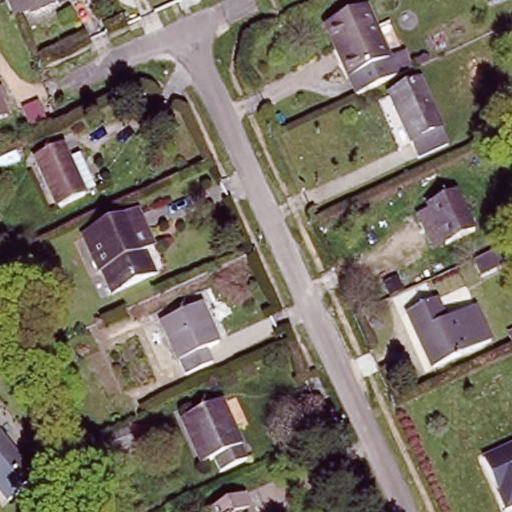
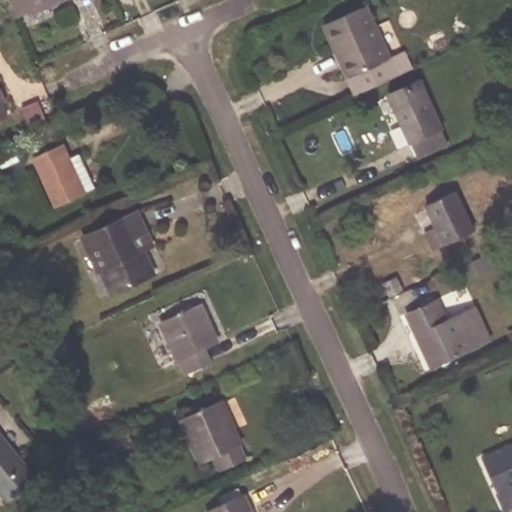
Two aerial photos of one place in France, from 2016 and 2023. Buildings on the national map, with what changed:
unchanged [(38,12),(36,8),(20,15),(13,0),(63,0),(38,12)]
unchanged [(333,47),(322,23),(364,4),(388,57),(353,73),(346,76),(333,47)]
unchanged [(453,24),(459,37),(438,47),(432,34),(453,24)]
unchanged [(406,129),(392,98),(422,84),(444,131),(419,143),(413,145),(406,129)]
unchanged [(0,119),(0,96),(8,115),(0,119)]
unchanged [(65,163),(76,157),(93,191),(80,197),(81,198),(55,210),(32,160),(58,148),(65,163)]
unchanged [(461,196),(479,235),(451,248),(433,209),(461,196)]
unchanged [(99,272),(96,274),(80,240),(135,215),(151,249),(141,254),(152,277),(110,296),(99,272)]
unchanged [(444,323),(473,309),(489,345),(431,371),(415,336),(406,315),(412,313),(434,302),(444,323)]
unchanged [(198,308),(216,347),(204,352),(211,367),(183,379),(159,325),(198,308)]
unchanged [(216,457),(205,462),(185,417),(224,399),(251,457),(223,470),(216,457)]
unchanged [(10,500),(0,486),(0,428),(39,477),(10,500)]
unchanged [(133,430),(136,443),(116,449),(113,436),(133,430)]
unchanged [(502,512),(498,512),(474,463),(512,446),(512,508),(502,512)]
unchanged [(249,512),(209,512),(243,497),(249,512)]

